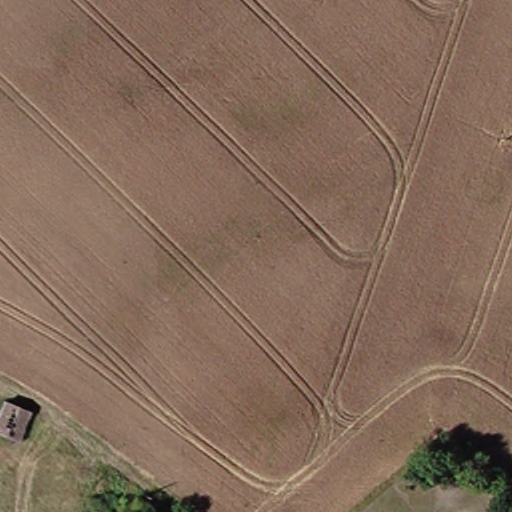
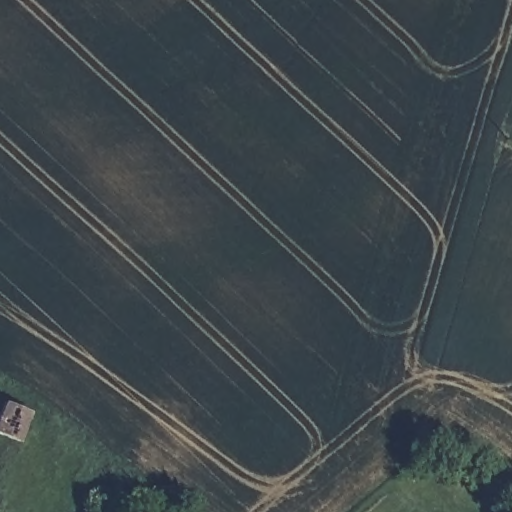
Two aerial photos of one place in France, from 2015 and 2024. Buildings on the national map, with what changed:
unchanged [(29,414),(17,446),(0,440),(0,410),(4,403),(29,414)]

